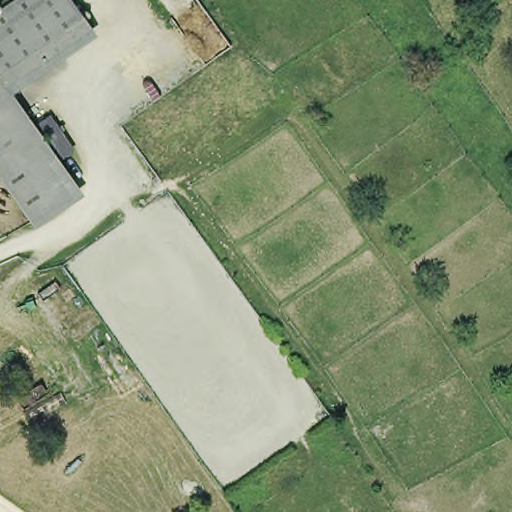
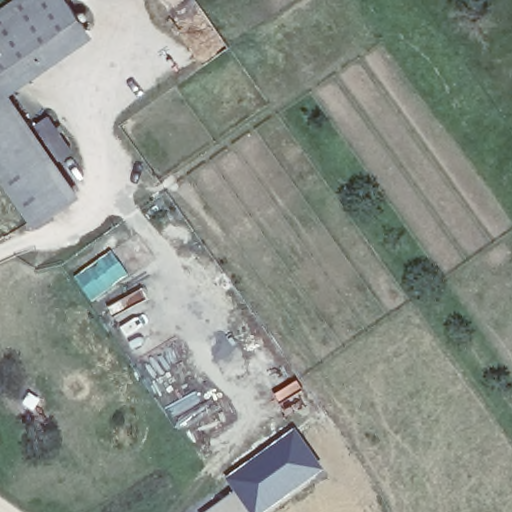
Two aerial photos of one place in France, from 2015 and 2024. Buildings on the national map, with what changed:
unchanged [(91,33),(27,78),(18,66),(0,79),(0,19),(27,0),(68,0),(91,33)]
unchanged [(0,178),(0,82),(80,196),(35,228),(0,178)]
new [(325,470),(269,512),(251,512),(234,491),(225,478),(295,428),(325,470)]
new [(251,512),(206,512),(234,491),(251,512)]

